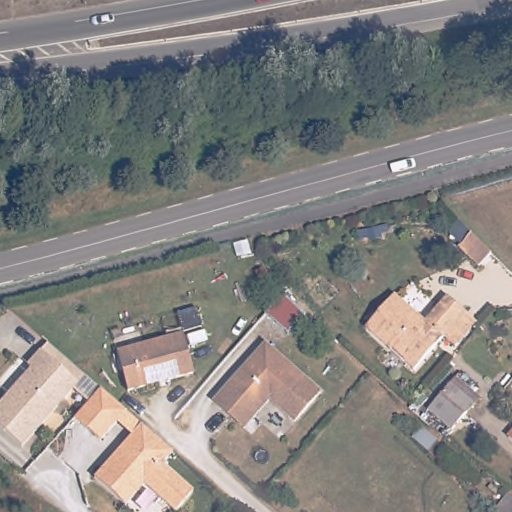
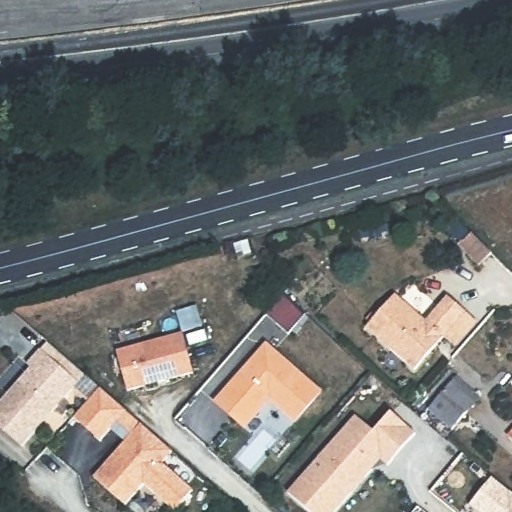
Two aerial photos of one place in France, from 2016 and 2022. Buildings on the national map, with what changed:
unchanged [(484,263),(464,242),(475,232),(495,252),(484,263)]
unchanged [(304,313),(287,333),(274,321),(264,313),(265,312),(280,295),(283,292),(304,313)]
unchanged [(444,338),(416,370),(366,325),(395,293),(416,311),(426,320),(447,296),(467,313),(482,327),(460,352),(444,338)]
unchanged [(191,370),(124,387),(114,348),(180,330),(191,370)]
unchanged [(29,365),(42,350),(49,342),(56,348),(86,375),(79,383),(23,446),(0,426),(0,404),(33,368),(29,365)]
unchanged [(232,416),(215,400),(260,350),(266,343),(320,391),(314,398),(294,420),(269,397),(253,415),(244,426),(232,416)]
unchanged [(427,407),(455,375),(478,395),(451,428),(427,407)]
unchanged [(102,389),(128,412),(102,443),(76,420),(102,389)]
new [(379,460),(334,512),(308,512),(286,492),(353,414),(372,431),(389,411),(413,432),(410,435),(414,438),(387,466),(379,460)]
unchanged [(169,453),(159,465),(191,491),(174,512),(142,485),(124,507),(92,480),(138,425),(169,453)]
new [(420,425),(437,439),(427,450),(410,435),(420,425)]
unchanged [(512,430),(512,432),(511,431),(512,430)]
demolished [(454,472),(436,457),(445,447),(462,462),(454,472)]
new [(469,504),(492,476),(512,492),(512,512),(478,512),(469,504)]
demolished [(512,485),(512,486),(512,512),(497,512),(493,508),(512,485)]

